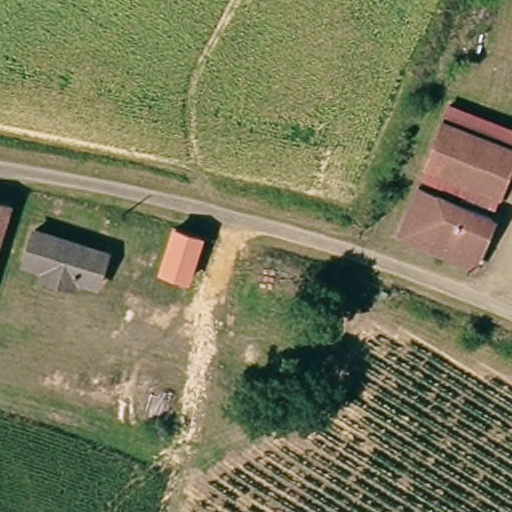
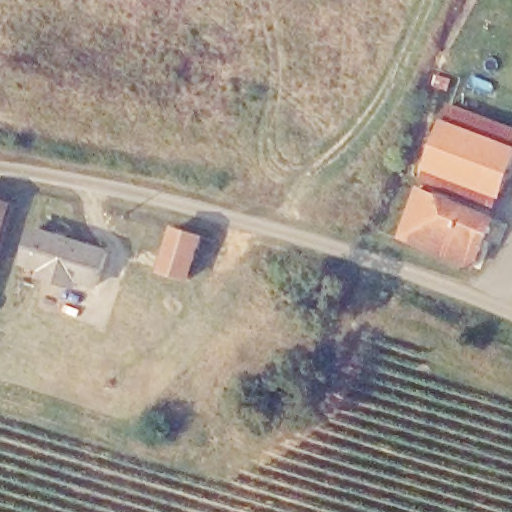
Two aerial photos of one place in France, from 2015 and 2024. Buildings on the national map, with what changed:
unchanged [(458,107),(511,127),(512,127),(512,142),(506,139),(453,120),(458,107)]
unchanged [(506,139),(512,142),(512,171),(443,146),(453,120),(506,139)]
unchanged [(500,212),(429,183),(433,173),(443,146),(512,171),(512,178),(503,203),(500,212)]
unchanged [(408,215),(415,216),(429,183),(500,212),(480,264),(403,231),(408,215)]
unchanged [(10,220),(0,257),(0,218),(10,220)]
unchanged [(113,251),(102,280),(86,275),(82,286),(51,276),(54,267),(29,258),(39,226),(113,251)]
unchanged [(208,240),(196,276),(171,269),(181,232),(208,240)]

